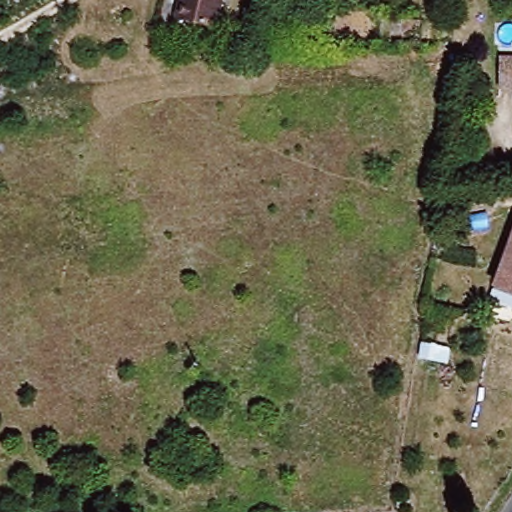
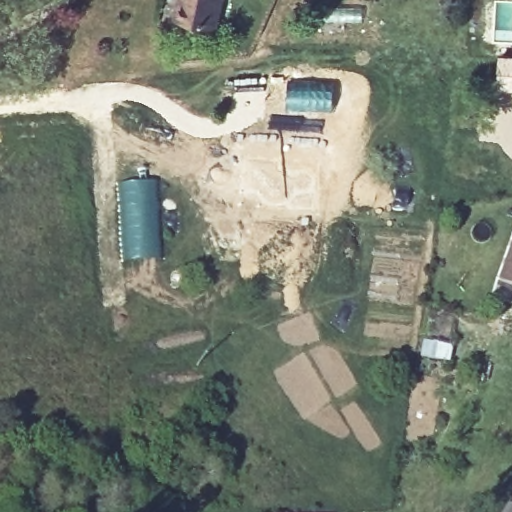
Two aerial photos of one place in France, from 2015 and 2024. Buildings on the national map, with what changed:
unchanged [(217,28),(181,19),(186,0),(224,0),(217,28)]
unchanged [(505,58),(512,58),(512,90),(504,90),(505,58)]
new [(155,182),(158,255),(123,260),(117,185),(155,182)]
unchanged [(512,246),(512,289),(498,285),(512,246)]

